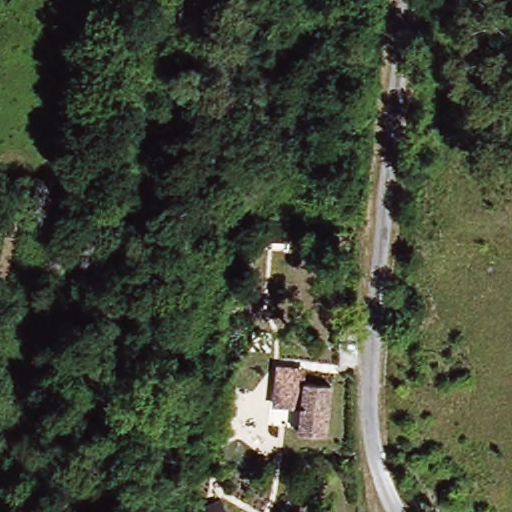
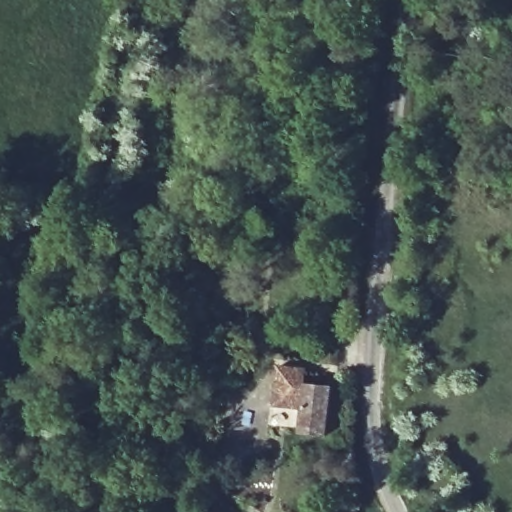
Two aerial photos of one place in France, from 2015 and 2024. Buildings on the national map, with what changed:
unchanged [(277,365),(305,367),(302,384),(300,410),(273,407),(277,365)]
unchanged [(330,387),(325,441),(297,438),(302,384),(330,387)]

